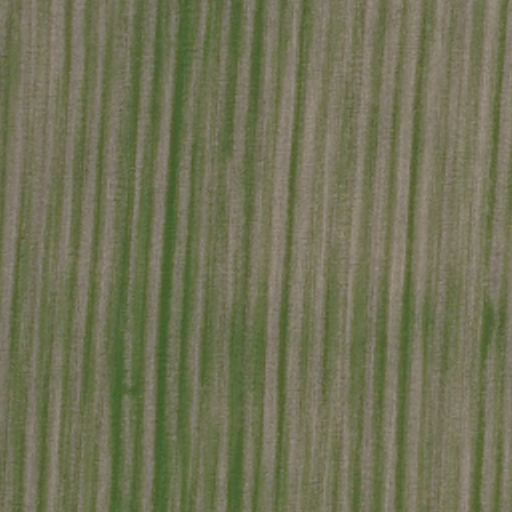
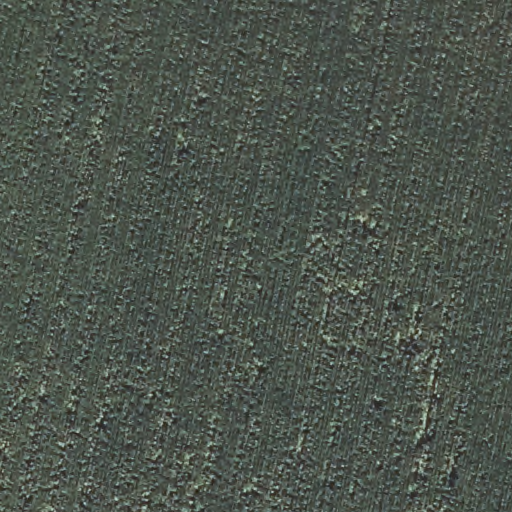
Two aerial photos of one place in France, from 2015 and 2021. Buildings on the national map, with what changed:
[]

